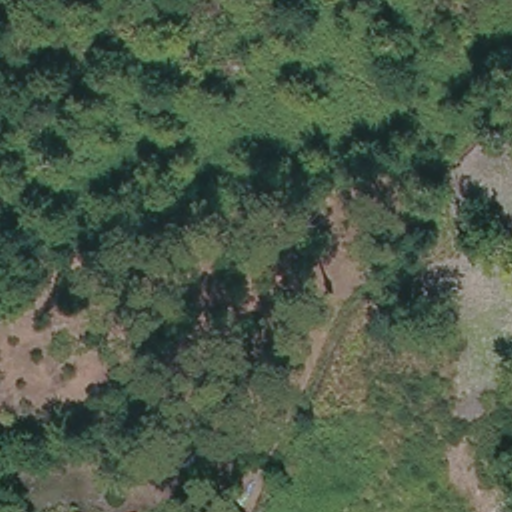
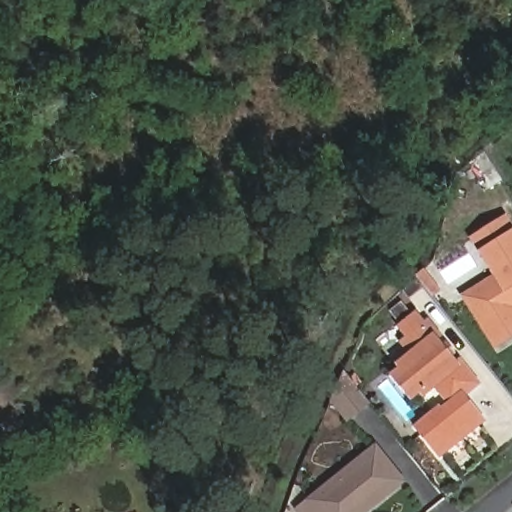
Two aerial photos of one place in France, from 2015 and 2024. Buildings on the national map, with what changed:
new [(503,180),(484,191),(464,160),(482,145),(503,180)]
new [(512,306),(510,307),(512,309),(512,321),(489,335),(466,298),(499,277),(474,238),(500,221),(512,239),(512,306)]
new [(484,383),(468,397),(488,421),(439,459),(413,426),(439,405),(441,406),(446,402),(437,386),(423,397),(421,394),(411,401),(389,372),(399,365),(396,363),(407,353),(400,343),(407,338),(399,326),(423,307),(484,383)]
new [(347,422),(330,402),(345,371),(372,403),(347,422)]
new [(369,512),(298,512),(296,510),(314,496),(376,442),(408,481),(369,512)]

